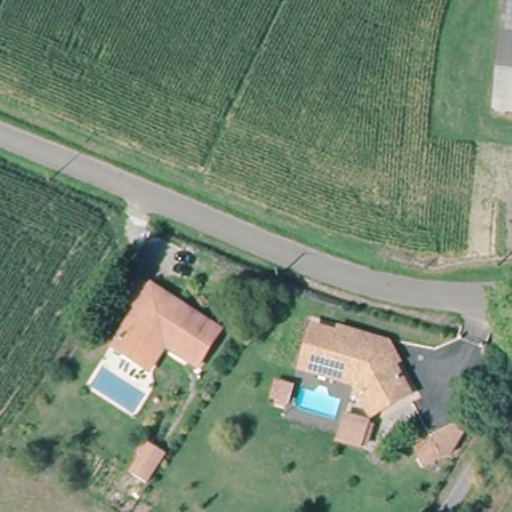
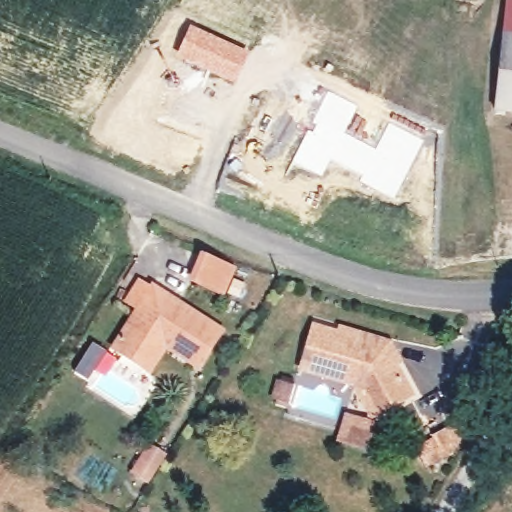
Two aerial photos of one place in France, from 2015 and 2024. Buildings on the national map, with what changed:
unchanged [(505,0),(512,1),(512,114),(498,113),(504,11),(505,0)]
new [(424,140),(394,198),(360,181),(363,176),(330,159),(322,175),(292,162),(308,131),(312,133),(316,125),(312,123),(328,91),(357,106),(344,133),(376,150),(390,123),(424,140)]
new [(237,268),(225,297),(187,282),(200,252),(237,268)]
unchanged [(141,362),(115,344),(148,285),(217,326),(195,367),(167,349),(155,372),(141,362)]
unchanged [(372,413),(355,385),(303,370),(315,330),(337,335),(338,331),(374,340),(391,346),(400,358),(394,363),(410,393),(372,413)]
unchanged [(371,421),(370,424),(375,426),(369,448),(363,448),(362,450),(334,443),(343,414),(371,421)]
unchanged [(433,438),(431,436),(462,421),(467,430),(452,453),(441,459),(424,467),(415,448),(433,438)]
unchanged [(167,455),(148,485),(128,474),(148,443),(167,455)]

